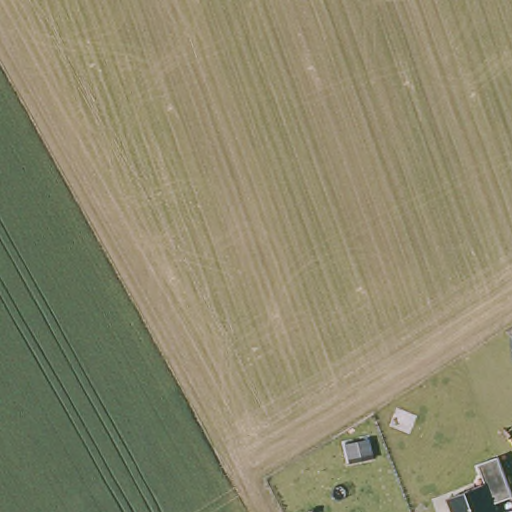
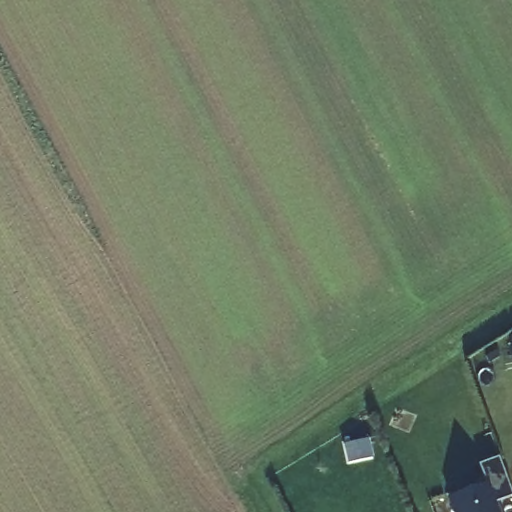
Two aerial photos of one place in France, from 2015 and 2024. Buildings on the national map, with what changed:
unchanged [(512,498),(498,502),(501,512),(455,512),(450,496),(485,483),(480,463),(500,455),(512,491),(512,498)]

